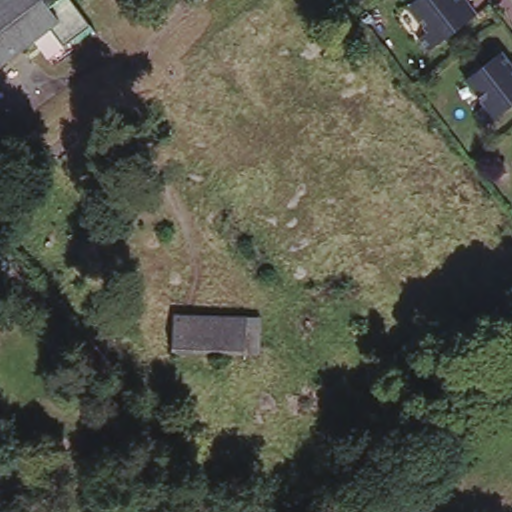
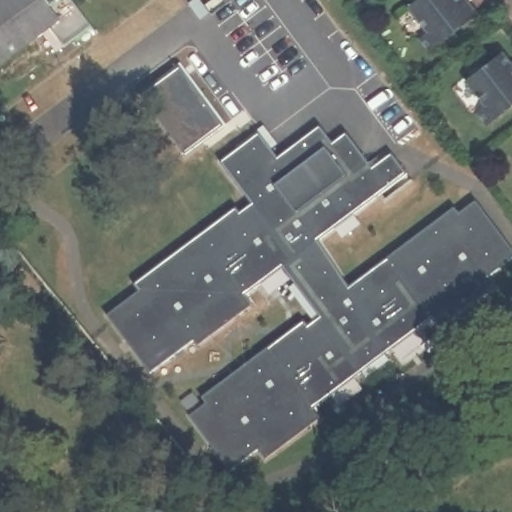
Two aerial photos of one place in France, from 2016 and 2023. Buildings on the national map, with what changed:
unchanged [(96,27),(80,39),(62,36),(55,27),(0,69),(0,0),(76,0),(96,27)]
unchanged [(418,38),(428,31),(408,6),(411,4),(412,0),(461,0),(463,3),(466,1),(477,14),(429,51),(418,38)]
unchanged [(485,100),(465,75),(468,72),(469,67),(476,62),(480,63),(502,47),(512,60),(512,100),(486,120),(476,107),(485,100)]
new [(220,155),(260,124),(278,147),(313,123),(326,137),(340,129),(362,159),(380,146),(394,161),(301,228),(340,274),(458,186),(503,239),(476,257),(484,267),(425,313),(417,303),(295,399),(302,410),(251,445),(245,436),(230,450),(193,405),(310,306),(270,256),(146,353),(119,312),(136,298),(126,288),(230,205),(237,211),(255,196),(220,155)]
demolished [(236,354),(163,351),(165,315),(238,317),(236,354)]

